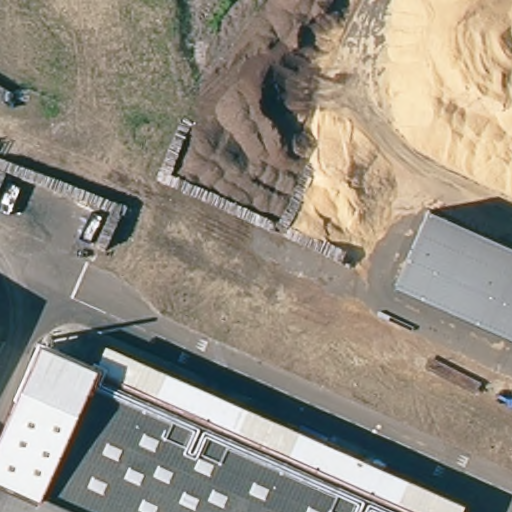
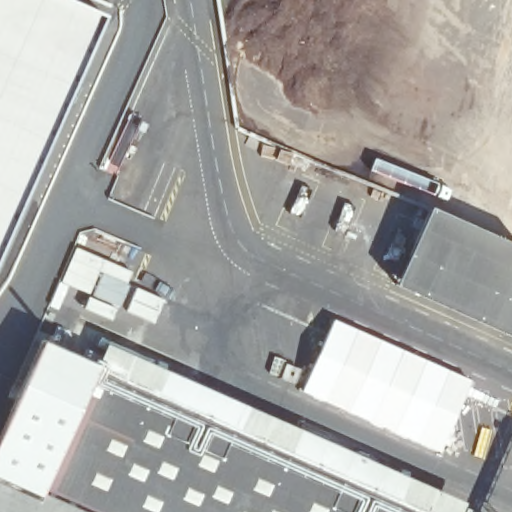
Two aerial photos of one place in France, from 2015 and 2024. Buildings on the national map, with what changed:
new [(0,237),(0,0),(61,0),(104,19),(0,237)]
unchanged [(512,246),(512,337),(396,285),(430,210),(512,246)]
new [(334,317),(473,380),(442,455),(300,392),(334,317)]
unchanged [(0,512),(0,434),(51,322),(190,385),(192,446),(188,512),(0,512)]
unchanged [(190,385),(472,512),(188,512),(192,446),(190,385)]

